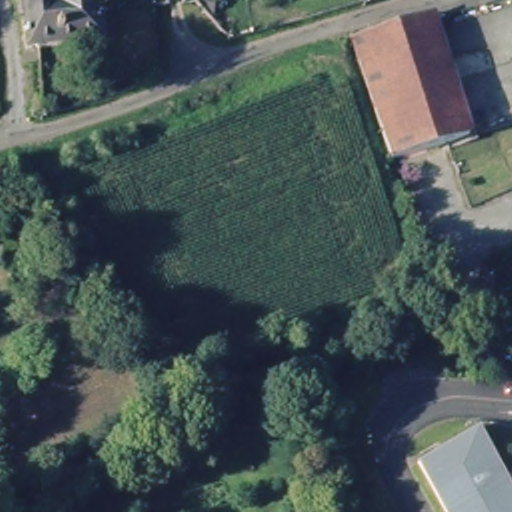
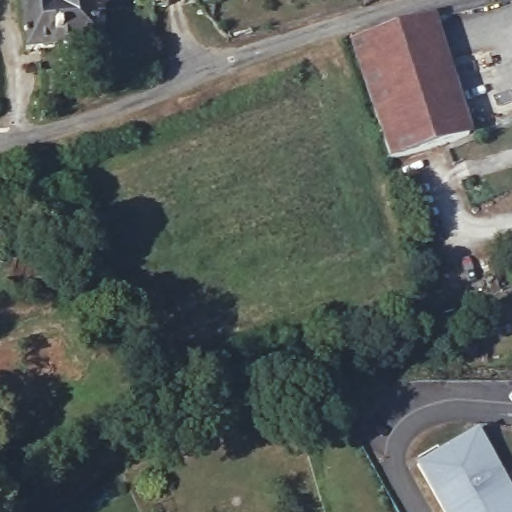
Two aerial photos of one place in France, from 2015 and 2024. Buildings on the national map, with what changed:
unchanged [(110,0),(110,1),(109,3),(108,6),(107,7),(104,9),(99,11),(101,46),(27,51),(23,0),(110,0)]
unchanged [(426,16),(427,20),(436,18),(468,137),(391,160),(354,38),(426,16)]
unchanged [(422,455),(437,447),(440,452),(476,432),(499,473),(512,495),(512,512),(443,512),(416,465),(424,460),(422,455)]
unchanged [(27,502),(41,495),(51,512),(19,512),(17,508),(27,502)]

